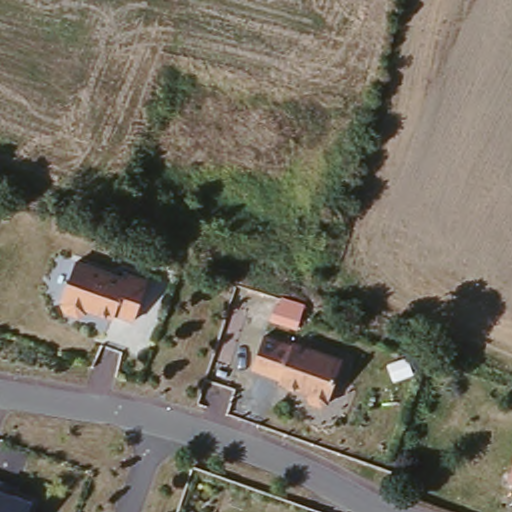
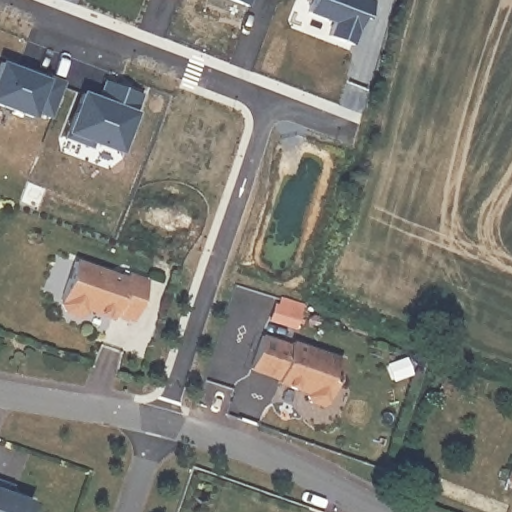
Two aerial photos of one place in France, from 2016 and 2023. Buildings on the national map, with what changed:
new [(255,11),(229,0),(259,0),(255,11)]
new [(286,2),(282,0),(287,0),(286,2)]
new [(382,4),(375,24),(370,22),(362,49),(338,41),(341,27),(316,16),(322,0),(372,0),(382,4)]
new [(28,74),(60,87),(48,120),(31,114),(29,119),(0,108),(0,67),(27,76),(28,74)]
new [(135,98),(115,154),(89,144),(88,149),(64,140),(79,97),(105,107),(107,102),(97,98),(102,86),(135,98)]
unchanged [(127,327),(85,315),(77,318),(68,317),(60,311),(74,258),(121,276),(123,270),(147,277),(127,327)]
unchanged [(273,388),(276,378),(247,369),(260,337),(288,346),(290,343),(335,360),(320,406),(273,388)]
unchanged [(512,455),(512,478),(505,475),(512,455)]
unchanged [(27,512),(0,512),(0,481),(34,496),(27,512)]

